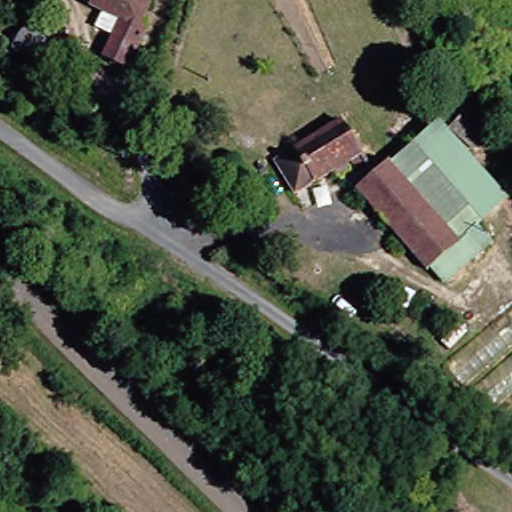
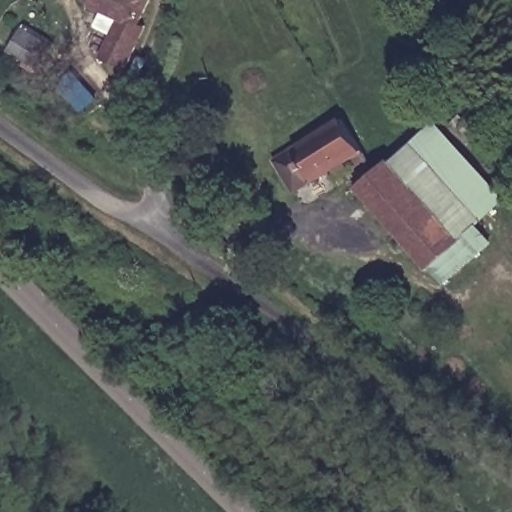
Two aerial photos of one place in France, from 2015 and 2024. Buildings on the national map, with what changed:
unchanged [(105,60),(116,32),(108,28),(114,10),(96,1),(96,0),(147,0),(141,19),(150,22),(129,71),(105,60)]
unchanged [(396,158),(442,121),(450,127),(467,114),(489,136),(471,152),(512,197),(483,225),(497,243),(449,283),(434,266),(431,270),(361,186),(396,158)]
unchanged [(371,154),(357,162),(348,152),(295,188),(276,160),(343,116),(371,154)]

